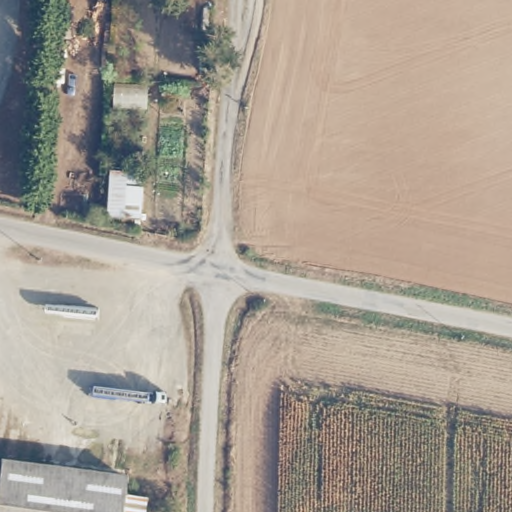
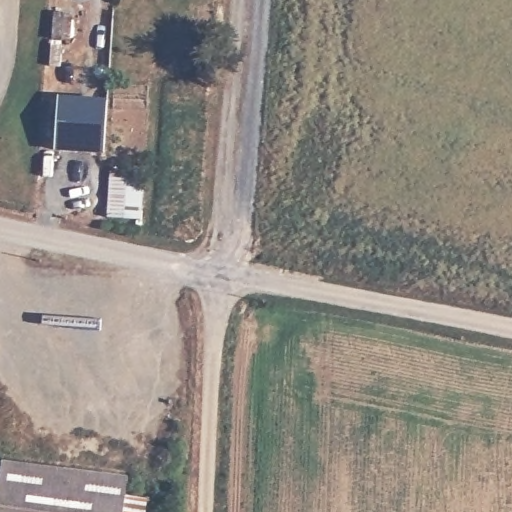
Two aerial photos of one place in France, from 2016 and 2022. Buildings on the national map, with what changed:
new [(58,95),(108,99),(104,155),(55,151),(58,95)]
unchanged [(112,166),(128,167),(127,184),(146,185),(144,217),(109,211),(112,166)]
unchanged [(147,498),(146,512),(0,512),(0,467),(126,482),(124,495),(147,498)]

